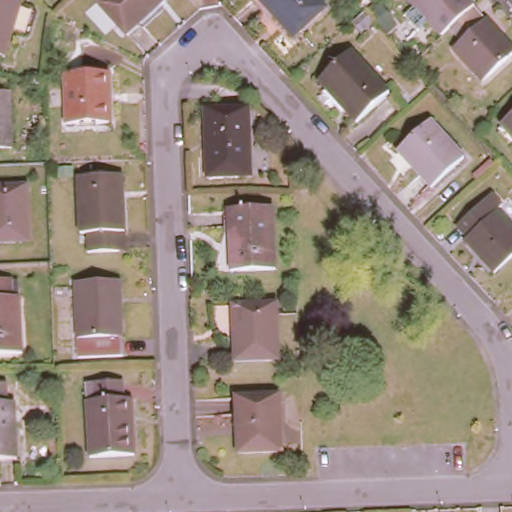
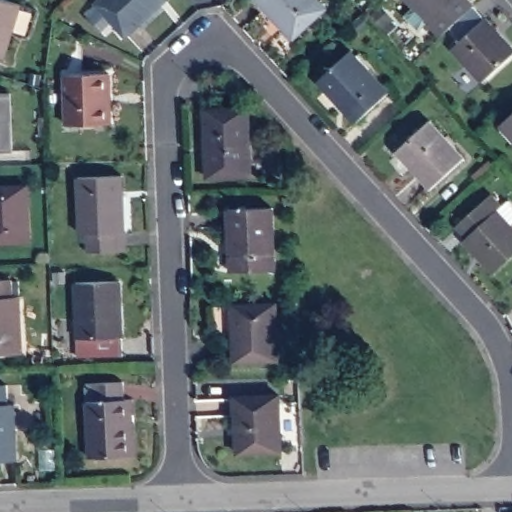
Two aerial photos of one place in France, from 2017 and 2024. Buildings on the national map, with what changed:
unchanged [(5,57),(0,55),(0,0),(6,0),(22,5),(5,57)]
unchanged [(125,32),(97,0),(161,0),(125,32)]
unchanged [(293,35),(261,0),(320,0),(326,6),(293,35)]
unchanged [(465,35),(453,22),(443,31),(429,16),(420,24),(406,9),(415,1),(414,0),(476,0),(476,1),(488,14),(512,40),(512,52),(486,76),(455,43),(465,35)]
unchanged [(355,122),(318,81),(351,51),(388,92),(355,122)]
unchanged [(67,124),(66,76),(109,74),(111,122),(67,124)]
unchanged [(11,149),(0,150),(0,94),(10,93),(11,149)]
unchanged [(208,175),(206,108),(250,106),(251,174),(208,175)]
unchanged [(512,114),(512,130),(504,121),(512,114)]
unchanged [(430,186),(397,150),(430,121),(463,156),(430,186)]
unchanged [(86,230),(80,230),(78,173),(122,172),(125,228),(119,228),(120,248),(87,249),(86,230)]
unchanged [(0,241),(0,184),(32,182),(33,239),(0,241)]
unchanged [(472,235),(461,223),(495,192),(505,205),(501,209),(512,221),(512,257),(497,271),(468,239),(472,235)]
unchanged [(232,267),(230,207),(273,206),(275,266),(232,267)]
unchanged [(0,351),(0,278),(15,277),(16,295),(21,295),(23,349),(0,351)]
unchanged [(78,355),(76,279),(120,277),(122,354),(78,355)]
unchanged [(235,357),(232,301),(276,300),(277,356),(235,357)]
unchanged [(86,399),(95,398),(94,379),(125,378),(126,398),(132,398),(135,452),(89,454),(86,399)]
unchanged [(13,382),(14,402),(19,402),(20,456),(0,457),(0,383),(13,382)]
unchanged [(241,448),(240,394),(281,393),(283,447),(241,448)]

